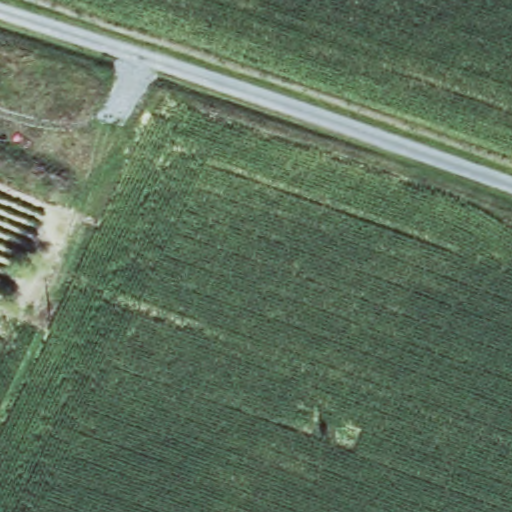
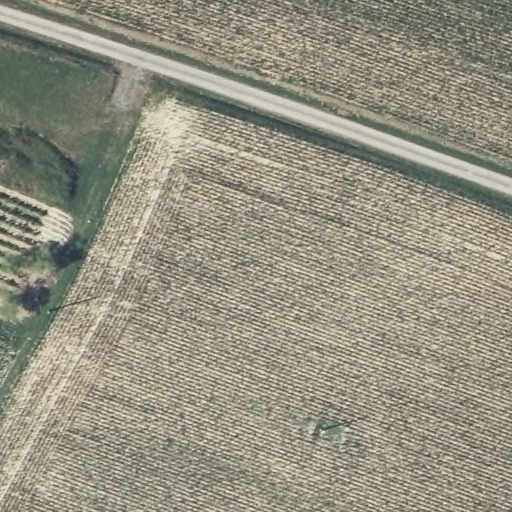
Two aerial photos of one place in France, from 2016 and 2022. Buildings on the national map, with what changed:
[]

